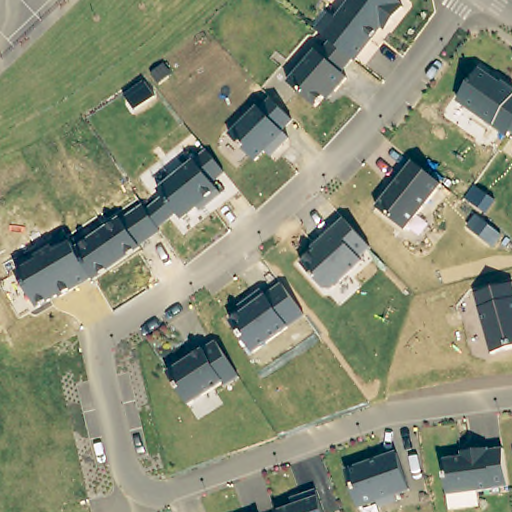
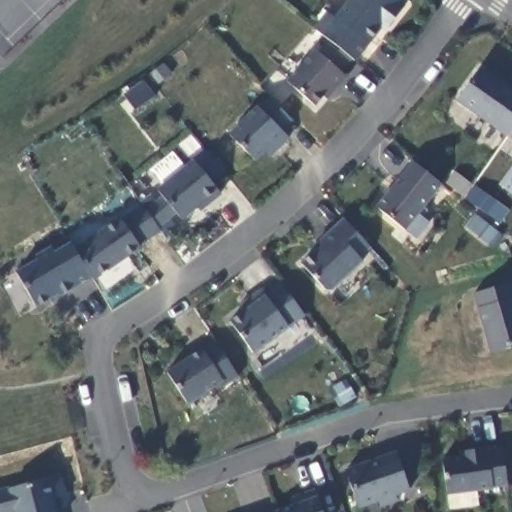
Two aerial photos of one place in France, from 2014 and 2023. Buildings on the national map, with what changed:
unchanged [(335,20),(351,0),(396,0),(400,3),(398,5),(402,9),(390,24),(385,20),(353,61),(351,60),(335,46),(333,45),(328,41),(315,31),(327,14),(335,20)]
unchanged [(340,73),(346,78),(334,92),(330,89),(315,107),(286,83),(314,50),(317,53),(328,41),(333,45),(335,46),(351,60),(340,73)]
unchanged [(506,136),(456,100),(477,70),(499,85),(500,83),(512,91),(512,128),(510,130),(510,132),(506,136)]
unchanged [(256,107),(258,109),(269,99),(282,112),(290,120),(280,131),(287,138),(275,150),(270,144),(254,161),(228,135),(256,107)]
unchanged [(510,132),(510,130),(512,128),(512,134),(510,132)]
unchanged [(36,260),(34,256),(50,247),(54,253),(70,243),(74,249),(119,216),(121,220),(141,204),(146,209),(164,198),(156,189),(192,160),(195,162),(206,151),(225,173),(215,187),(221,192),(201,210),(197,207),(182,221),(176,214),(160,230),(161,231),(140,246),(143,249),(95,282),(92,277),(60,298),(59,295),(36,308),(15,272),(36,260)]
unchanged [(410,162),(432,179),(440,185),(403,231),(374,207),(410,162)]
unchanged [(318,241),(342,219),(369,248),(358,258),(361,261),(330,290),(323,290),(300,264),(321,244),(318,241)]
unchanged [(510,282),(512,287),(512,347),(493,352),(475,292),(510,282)]
unchanged [(290,328),(287,326),(253,354),(229,321),(239,315),(232,310),(260,289),(265,295),(280,284),(305,315),(290,328)]
unchanged [(214,341),(237,377),(224,386),(221,383),(187,406),(165,373),(214,341)]
unchanged [(470,455),(469,450),(486,447),(486,449),(501,447),(505,473),(506,485),(492,487),(492,488),(446,495),(441,459),(470,455)]
unchanged [(395,453),(408,489),(394,494),(396,500),(379,506),(377,500),(357,507),(345,471),(395,453)]
new [(55,498),(59,512),(0,512),(0,490),(60,475),(65,496),(55,498)]
unchanged [(322,512),(274,512),(301,502),(298,495),(313,489),(322,512)]

